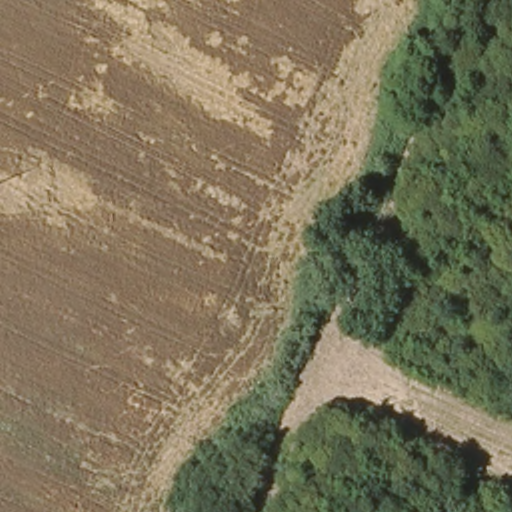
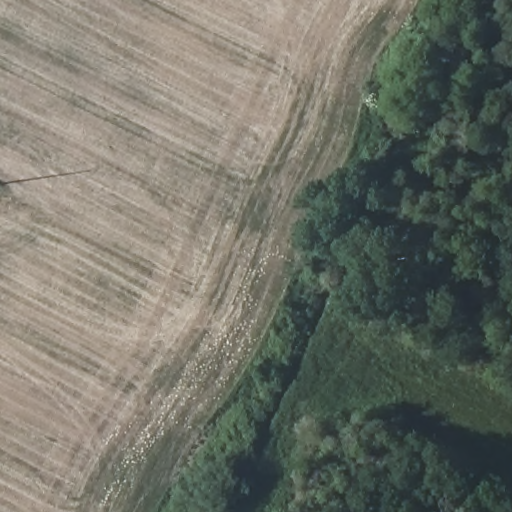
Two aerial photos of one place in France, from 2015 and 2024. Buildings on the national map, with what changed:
[]

